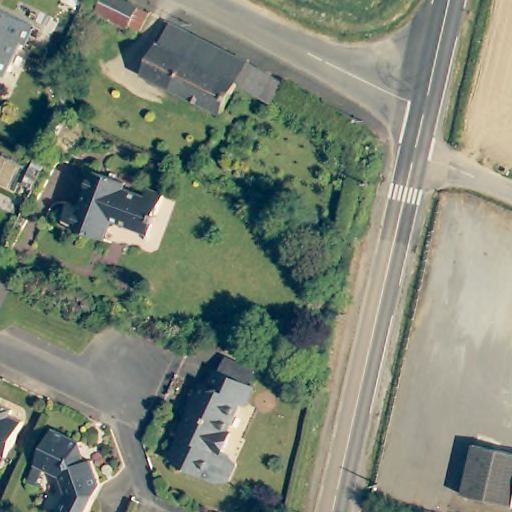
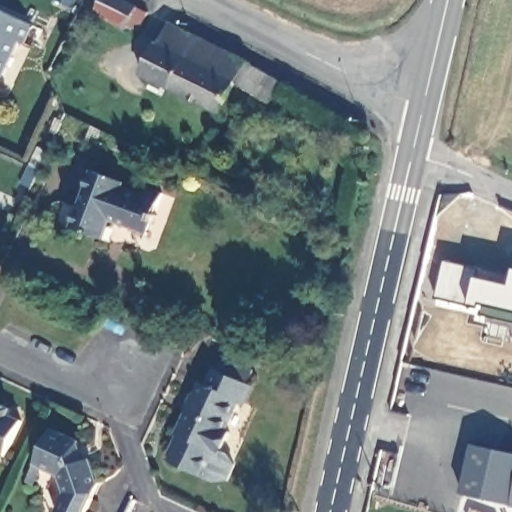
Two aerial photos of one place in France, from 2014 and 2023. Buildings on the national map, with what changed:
unchanged [(129,24),(127,27),(96,12),(102,0),(124,0),(137,6),(149,12),(141,30),(129,24)]
unchanged [(0,10),(34,26),(25,44),(20,42),(4,76),(0,74),(0,10)]
unchanged [(271,103),(237,82),(222,112),(143,74),(159,42),(161,44),(171,24),(247,61),(283,83),(271,103)]
unchanged [(69,227),(89,171),(120,183),(118,187),(141,196),(144,188),(160,193),(152,214),(155,216),(152,223),(149,222),(145,234),(107,220),(100,238),(69,227)]
new [(482,268),(512,278),(512,320),(483,314),(484,309),(473,306),(439,298),(447,260),(482,268)]
unchanged [(234,437),(225,457),(232,460),(238,469),(231,485),(220,485),(177,466),(174,458),(182,439),(181,438),(205,387),(209,389),(217,373),(221,375),(227,362),(257,375),(250,389),(255,391),(247,409),(242,407),(229,435),(234,437)]
unchanged [(0,403),(14,409),(11,415),(25,421),(9,456),(0,452),(0,403)]
unchanged [(102,483),(89,512),(62,512),(70,495),(64,478),(39,466),(56,430),(82,443),(80,447),(86,464),(94,461),(102,483)]
unchanged [(470,489),(481,439),(512,447),(512,499),(470,489)]

